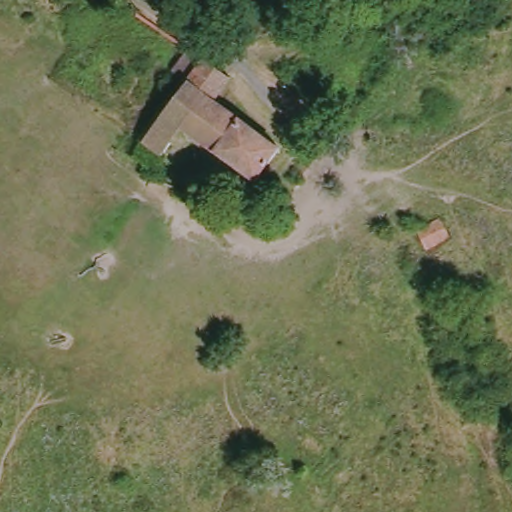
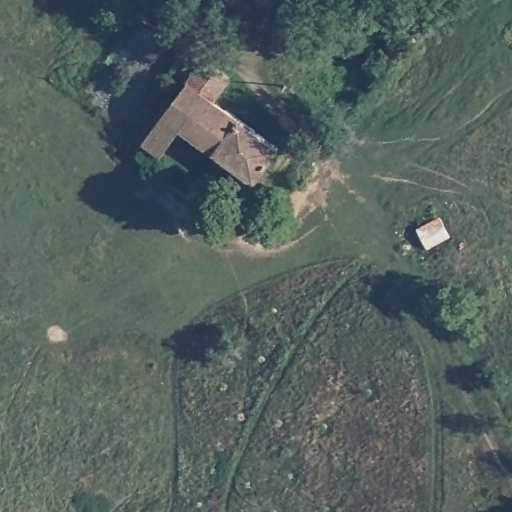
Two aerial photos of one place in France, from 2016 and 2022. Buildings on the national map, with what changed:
unchanged [(235,80),(222,98),(282,149),(259,180),(182,131),(165,155),(149,142),(193,84),(180,71),(197,50),(235,80)]

